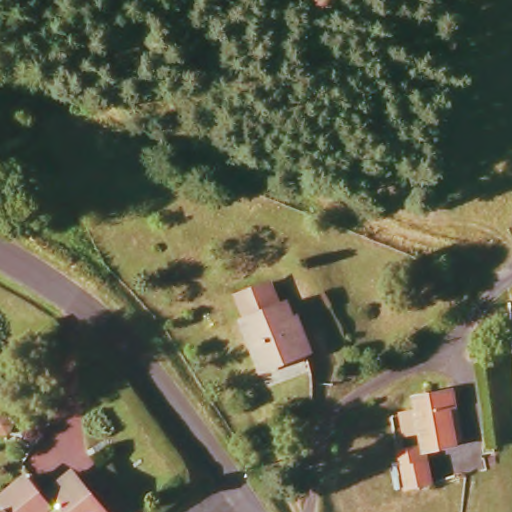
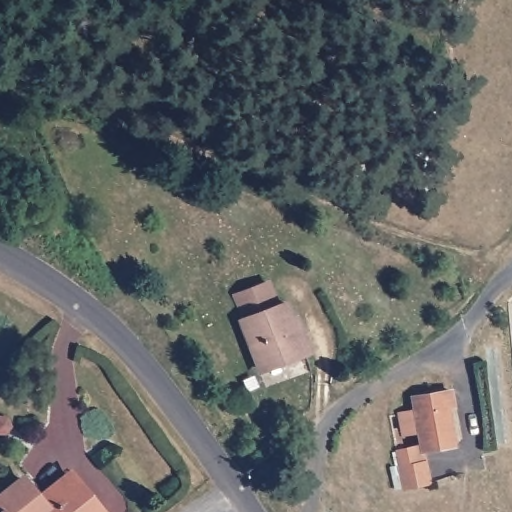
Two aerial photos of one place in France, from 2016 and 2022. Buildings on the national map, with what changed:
unchanged [(283,305),(294,304),(318,357),(263,382),(239,327),(231,301),(274,281),(283,305)]
unchanged [(462,410),(453,411),(461,448),(429,455),(433,489),(400,498),(393,453),(423,452),(421,438),(403,443),(400,418),(420,416),(417,397),(457,390),(462,410)]
unchanged [(43,507),(76,480),(99,512),(6,512),(0,504),(0,499),(25,481),(43,507)]

